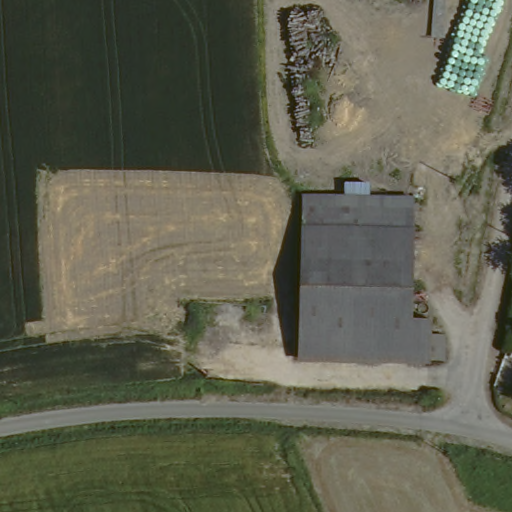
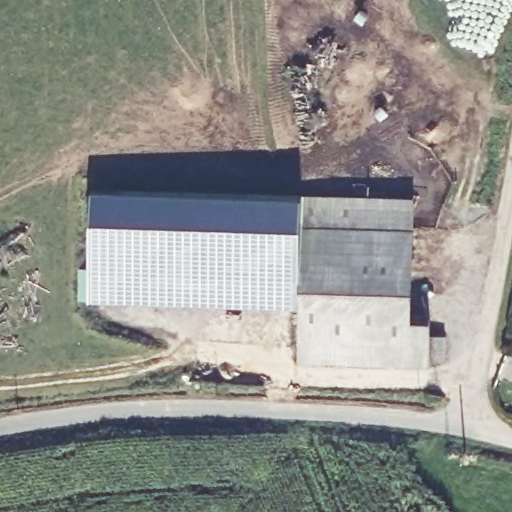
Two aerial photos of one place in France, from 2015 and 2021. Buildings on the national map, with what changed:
new [(89,300),(93,189),(300,195),(296,303),(89,300)]
unchanged [(402,362),(294,358),(296,312),(300,195),(409,198),(405,318),(402,362)]
unchanged [(426,320),(424,337),(442,338),(439,363),(402,362),(405,318),(426,320)]

